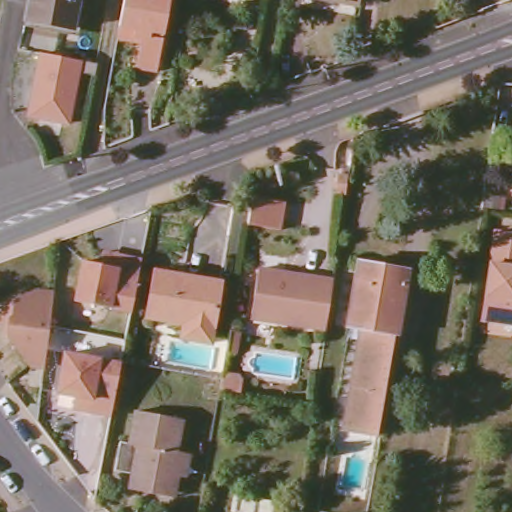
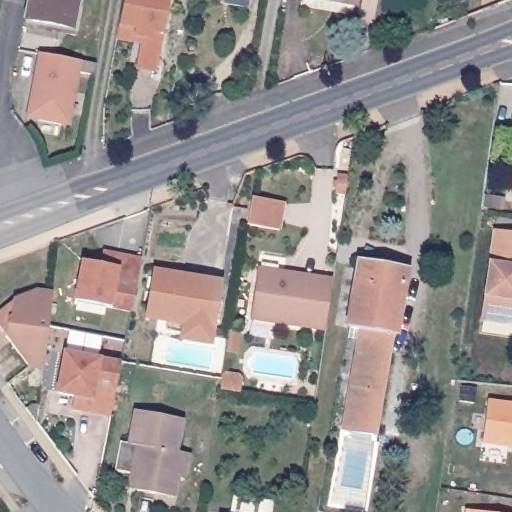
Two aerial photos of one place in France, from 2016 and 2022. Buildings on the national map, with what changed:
unchanged [(24,24),(28,0),(79,0),(74,32),(24,24)]
unchanged [(121,25),(125,0),(171,0),(158,73),(138,68),(143,42),(119,36),(121,25)]
unchanged [(352,5),(335,2),(335,0),(353,0),(352,5)]
unchanged [(41,55),(99,65),(96,76),(82,74),(71,127),(28,119),(41,55)]
unchanged [(340,186),(343,168),(354,170),(351,187),(340,186)]
unchanged [(245,221),(249,194),(282,200),(277,226),(245,221)]
unchanged [(477,205),(479,195),(491,196),(490,206),(477,205)]
unchanged [(493,227),(512,230),(512,325),(479,320),(480,314),(493,227)]
unchanged [(94,267),(96,255),(98,255),(106,256),(135,261),(126,313),(90,307),(70,304),(77,264),(94,267)]
unchanged [(376,435),(346,430),(362,328),(350,326),(361,260),(402,266),(392,334),(386,370),(376,435)]
unchanged [(253,316),(261,266),(283,270),(283,275),(336,283),(329,327),(253,316)]
unchanged [(182,340),(184,324),(149,318),(157,271),(198,277),(198,281),(222,285),(213,343),(182,340)]
unchanged [(31,367),(8,337),(9,321),(12,317),(14,300),(34,291),(54,293),(46,368),(31,367)]
unchanged [(229,350),(229,347),(232,330),(242,332),(239,352),(229,350)]
unchanged [(71,400),(54,396),(61,356),(83,360),(117,366),(114,383),(108,418),(79,413),(75,413),(69,412),(71,400)]
unchanged [(241,376),(244,381),(242,393),(222,390),(224,380),(225,375),(241,376)]
new [(491,400),(512,403),(512,447),(484,442),(491,400)]
unchanged [(184,453),(175,495),(160,491),(159,496),(137,492),(142,469),(137,468),(136,475),(117,471),(122,442),(133,444),(140,412),(184,421),(178,452),(184,453)]
new [(493,512),(462,512),(462,508),(493,512)]

